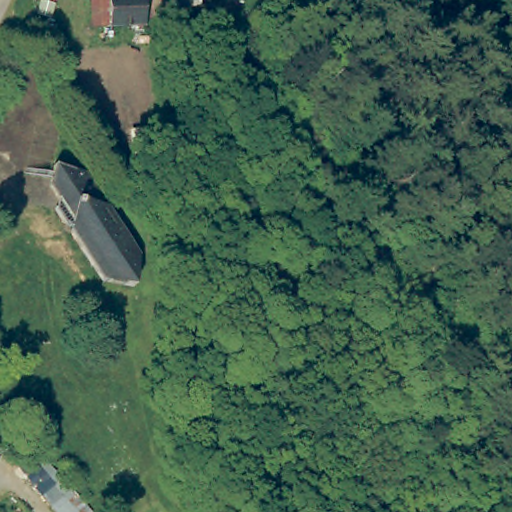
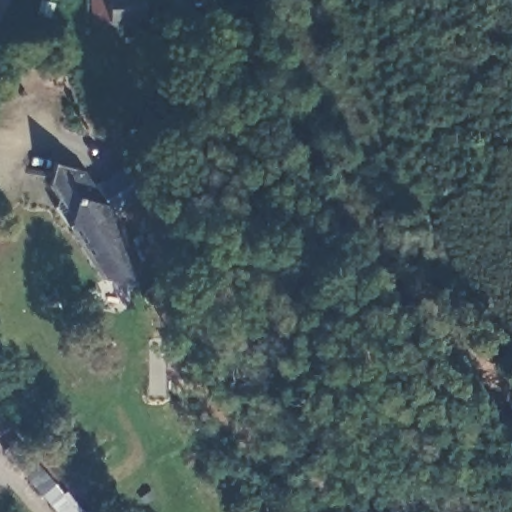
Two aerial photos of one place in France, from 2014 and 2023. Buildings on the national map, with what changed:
unchanged [(146,0),(146,23),(93,21),(94,0),(146,0)]
unchanged [(176,7),(174,0),(209,0),(210,1),(185,5),(176,7)]
unchanged [(155,119),(164,153),(145,159),(135,125),(155,119)]
unchanged [(85,168),(133,257),(126,289),(93,281),(67,231),(72,227),(66,217),(61,220),(53,204),(56,197),(54,190),(50,185),(50,165),(85,168)]

